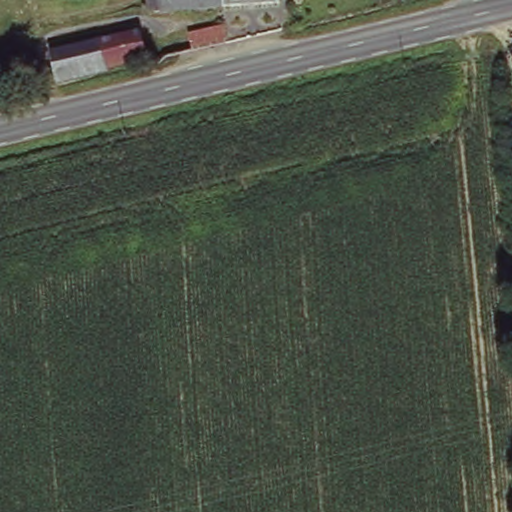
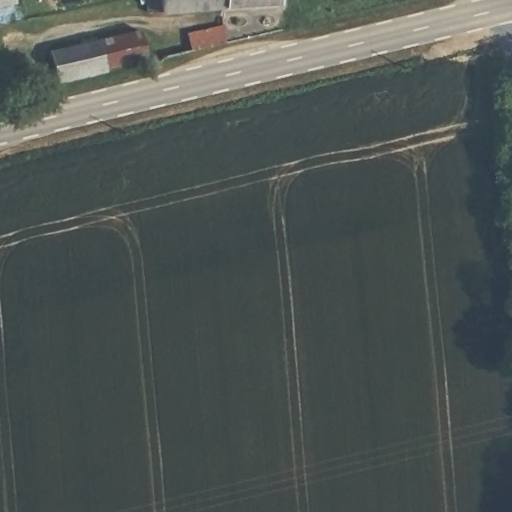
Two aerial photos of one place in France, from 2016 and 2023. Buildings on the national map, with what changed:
unchanged [(279,0),(279,1),(147,13),(145,0),(279,0)]
unchanged [(50,47),(140,26),(145,49),(105,60),(108,67),(57,79),(50,47)]
unchanged [(211,55),(207,37),(241,31),(244,46),(211,55)]

